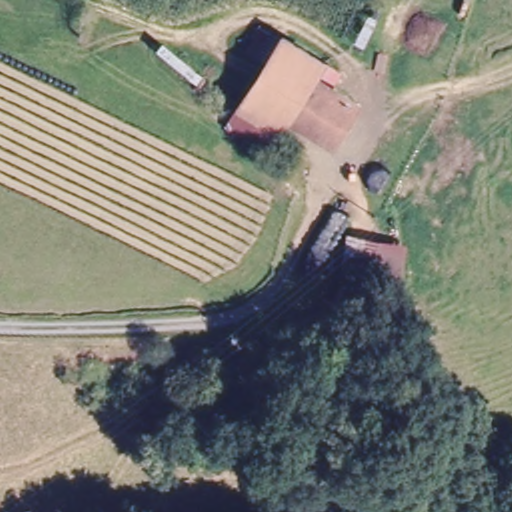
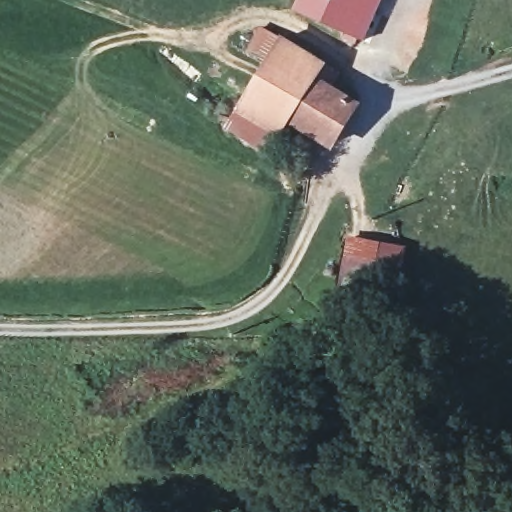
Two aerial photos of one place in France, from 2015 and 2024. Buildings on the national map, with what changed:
new [(382,0),(365,40),(293,9),(297,0),(382,0)]
unchanged [(247,57),(261,33),(283,44),(323,69),(340,80),(331,95),(356,110),(331,150),(290,124),(281,139),(240,113),(267,70),(247,57)]
unchanged [(281,139),(269,158),(228,132),(240,113),(281,139)]
unchanged [(390,302),(339,293),(350,228),(398,236),(390,302)]

